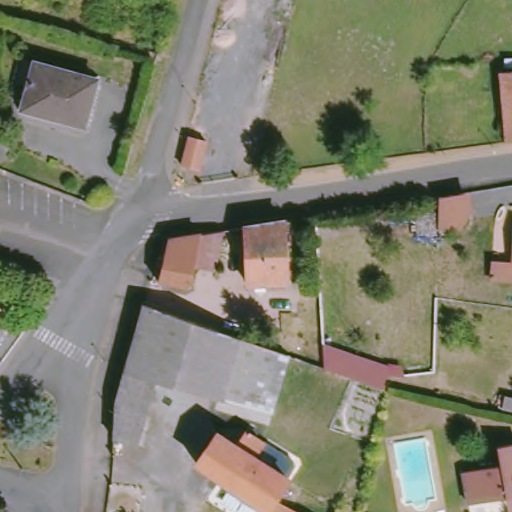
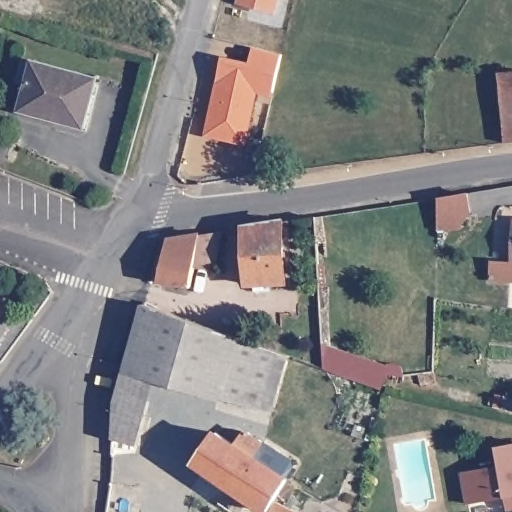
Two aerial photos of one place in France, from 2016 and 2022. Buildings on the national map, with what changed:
new [(236,0),(279,0),(276,12),(236,3),(236,0)]
new [(250,62),(253,49),(281,56),(272,97),(256,93),(244,146),(203,137),(223,57),(250,62)]
unchanged [(67,117),(65,121),(23,110),(30,84),(18,81),(24,57),(96,77),(85,121),(67,117)]
unchanged [(504,148),(497,75),(512,74),(512,147),(504,148)]
unchanged [(474,192),(477,225),(441,229),(439,198),(474,192)]
unchanged [(243,222),(270,219),(276,217),(283,217),(288,262),(281,263),(283,281),(246,283),(243,222)]
unchanged [(509,261),(512,219),(512,261),(509,261)]
unchanged [(189,286),(148,278),(153,256),(160,257),(164,235),(220,227),(221,227),(213,263),(212,270),(193,266),(189,286)]
unchanged [(155,385),(131,452),(109,447),(118,394),(138,307),(201,328),(286,358),(282,371),(271,416),(263,413),(155,385)]
unchanged [(324,345),(386,365),(401,365),(404,377),(386,374),(383,388),(325,367),(324,345)]
unchanged [(191,457),(206,427),(226,437),(234,424),(253,435),(246,448),(284,469),(266,500),(191,457)]
unchanged [(474,502),(467,471),(503,464),(499,445),(512,443),(512,495),(474,502)]
unchanged [(278,492),(284,496),(315,512),(268,512),(278,492)]

